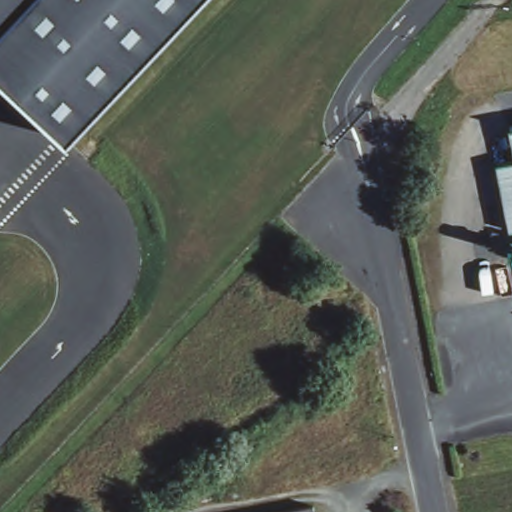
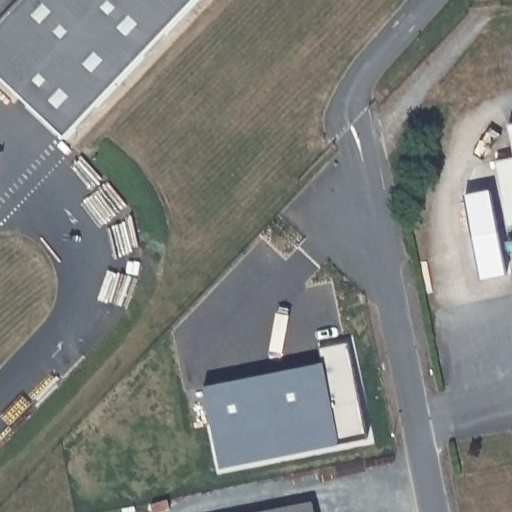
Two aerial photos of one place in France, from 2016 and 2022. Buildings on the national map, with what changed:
unchanged [(66,138),(0,73),(0,0),(196,0),(66,138)]
unchanged [(511,127),(512,126),(512,132),(511,127)]
unchanged [(508,226),(496,160),(512,157),(512,225),(508,226)]
new [(323,364),(320,349),(347,344),(367,438),(338,444),(220,467),(205,387),(323,364)]
unchanged [(308,512),(259,512),(306,504),(308,512)]

